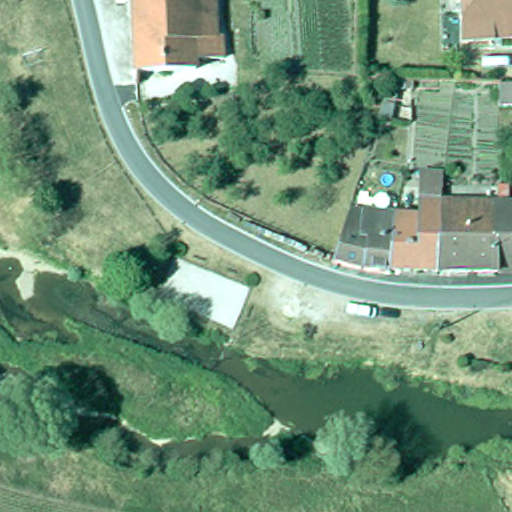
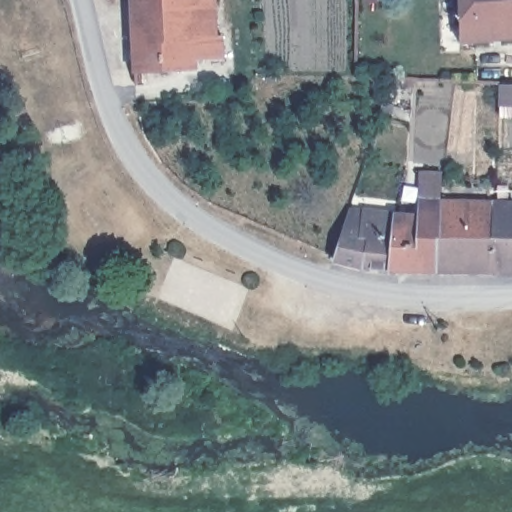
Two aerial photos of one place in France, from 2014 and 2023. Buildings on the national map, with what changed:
unchanged [(229,59),(195,61),(196,70),(134,73),(131,0),(228,0),(229,16),(229,59)]
unchanged [(459,12),(460,0),(512,0),(512,41),(458,45),(459,12)]
unchanged [(496,86),(512,87),(512,109),(496,108),(496,86)]
unchanged [(440,171),(441,196),(421,196),(421,171),(440,171)]
unchanged [(497,201),(499,201),(498,274),(441,272),(444,203),(497,201)]
unchanged [(512,202),(512,274),(498,274),(499,201),(512,202)]
unchanged [(397,216),(423,218),(425,204),(444,203),(441,272),(391,271),(397,216)]
unchanged [(355,210),(397,216),(391,271),(379,270),(359,267),(340,262),(341,258),(355,210)]

